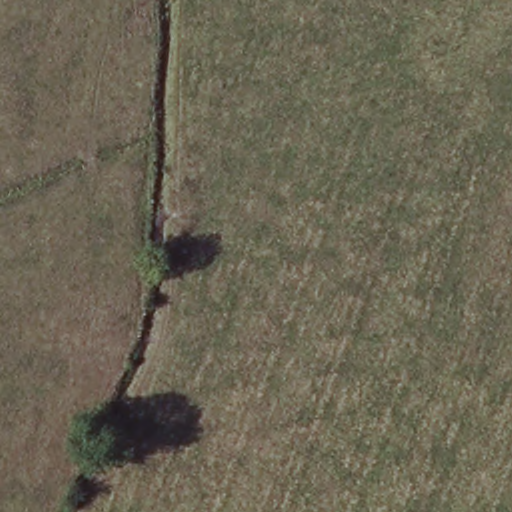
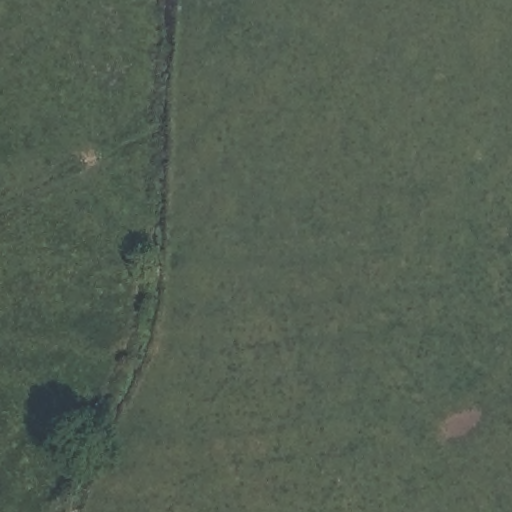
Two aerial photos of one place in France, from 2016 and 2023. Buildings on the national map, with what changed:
[]

